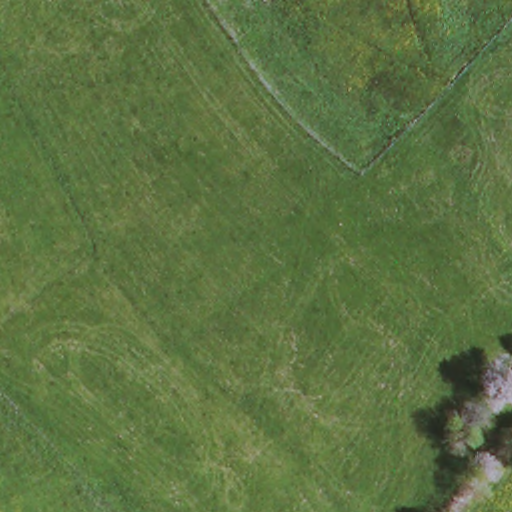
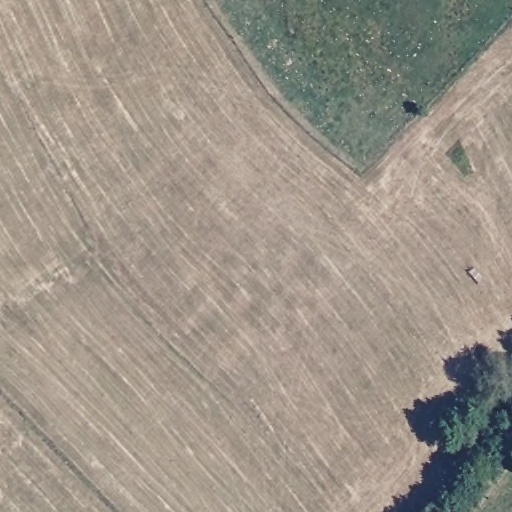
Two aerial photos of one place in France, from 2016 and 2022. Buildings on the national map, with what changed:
[]

